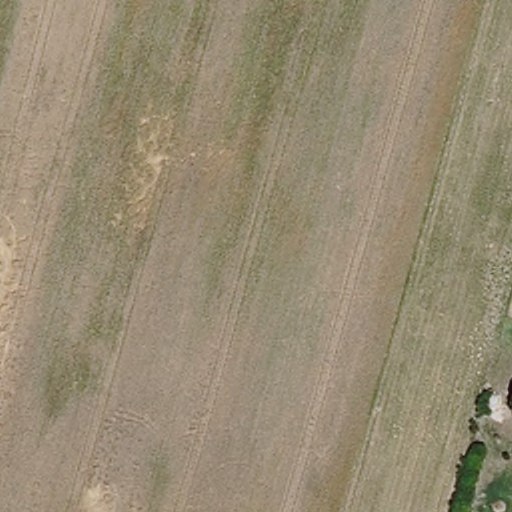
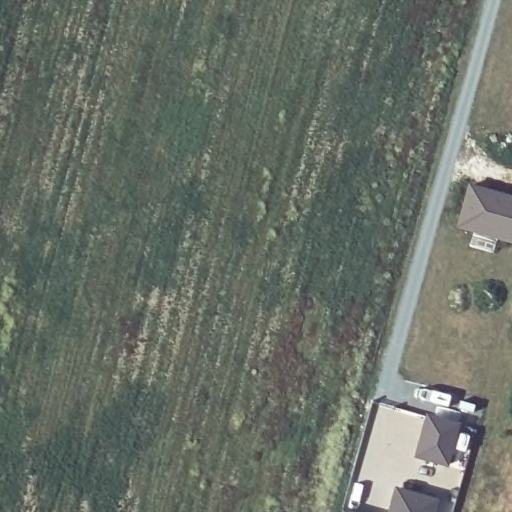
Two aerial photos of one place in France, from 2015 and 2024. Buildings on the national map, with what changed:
new [(512,195),(512,244),(490,239),(455,227),(468,182),(512,195)]
new [(424,413),(456,422),(444,462),(413,453),(424,413)]
new [(432,498),(429,512),(385,512),(392,486),(432,498)]
new [(352,512),(337,512),(338,508),(352,512)]

